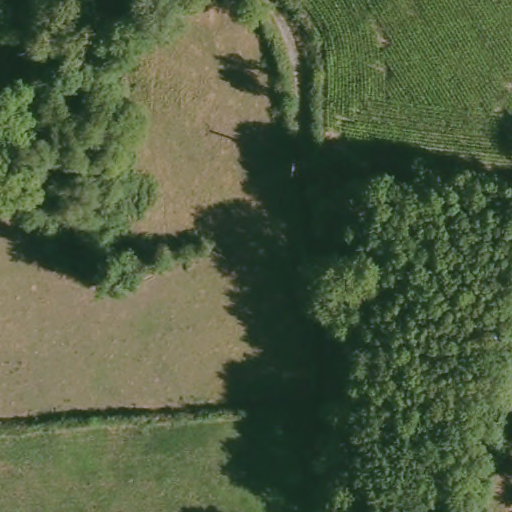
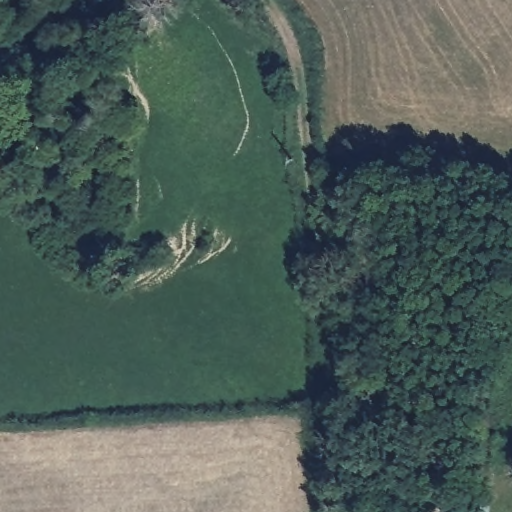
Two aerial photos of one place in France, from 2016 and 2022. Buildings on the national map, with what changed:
[]

